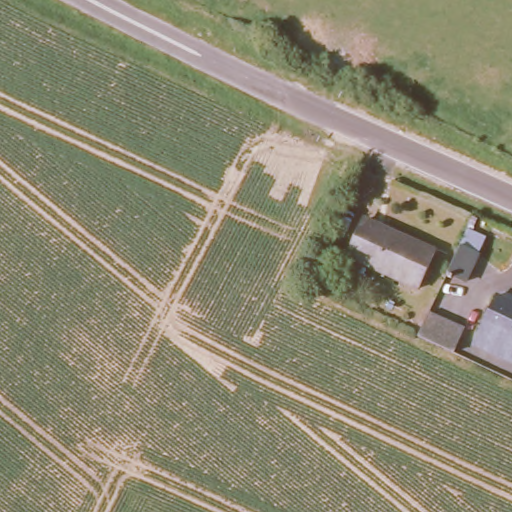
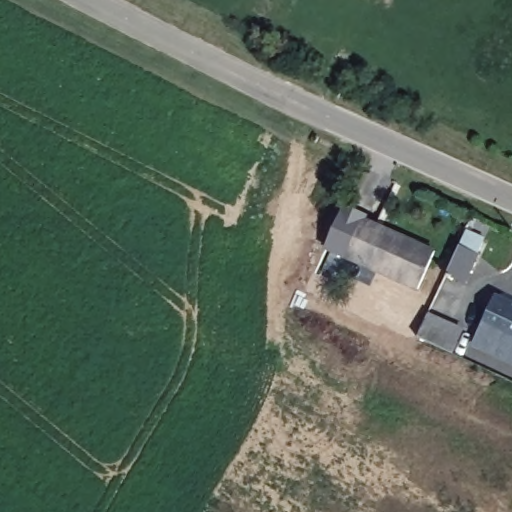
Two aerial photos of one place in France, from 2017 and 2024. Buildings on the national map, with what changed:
unchanged [(434,250),(413,290),(340,256),(360,216),(434,250)]
unchanged [(492,295),(512,303),(512,360),(470,340),(492,295)]
unchanged [(425,317),(460,332),(450,355),(415,339),(425,317)]

